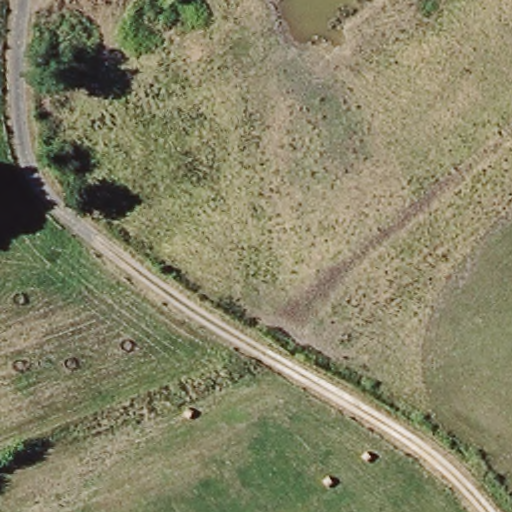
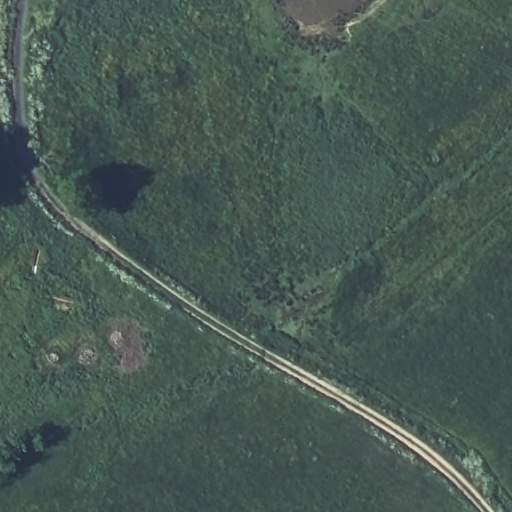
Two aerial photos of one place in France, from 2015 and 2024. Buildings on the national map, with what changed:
[]

